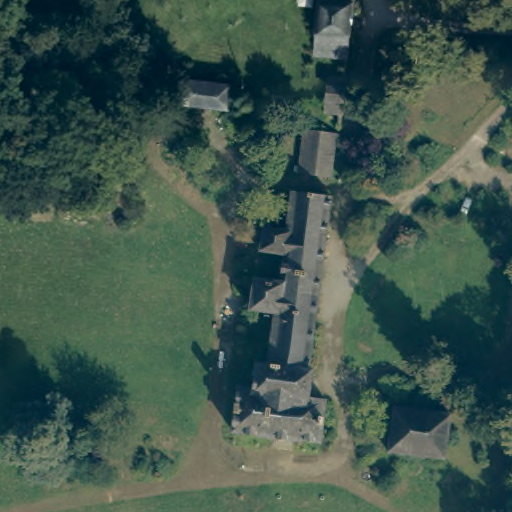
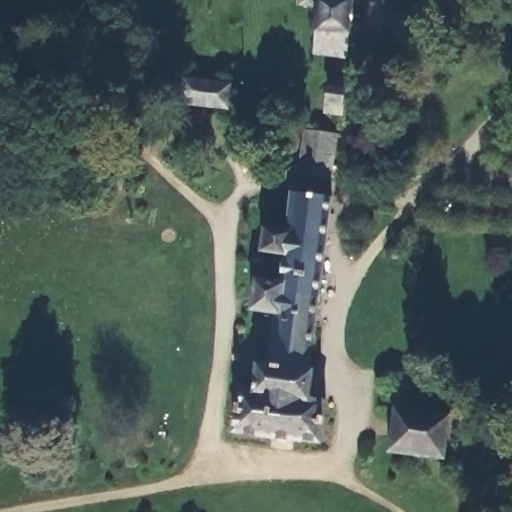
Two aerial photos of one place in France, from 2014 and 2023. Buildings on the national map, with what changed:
unchanged [(355,0),(349,54),(314,50),(319,0),(355,0)]
unchanged [(183,102),(185,77),(231,83),(229,107),(183,102)]
unchanged [(342,115),(326,114),(330,78),(346,81),(342,115)]
unchanged [(331,179),(298,175),(303,131),(336,136),(331,179)]
unchanged [(328,235),(321,289),(311,365),(311,367),(315,367),(311,396),(327,397),(321,443),(234,433),(237,408),(239,383),(256,385),(259,361),(271,363),(272,363),(279,309),(256,306),(260,278),(282,280),(285,248),(264,245),(266,222),(290,224),(294,189),(315,192),(333,194),(328,235)]
unchanged [(391,410),(447,416),(442,461),(386,455),(391,410)]

